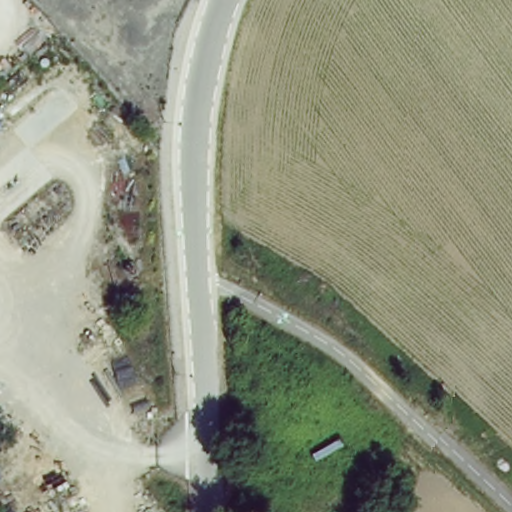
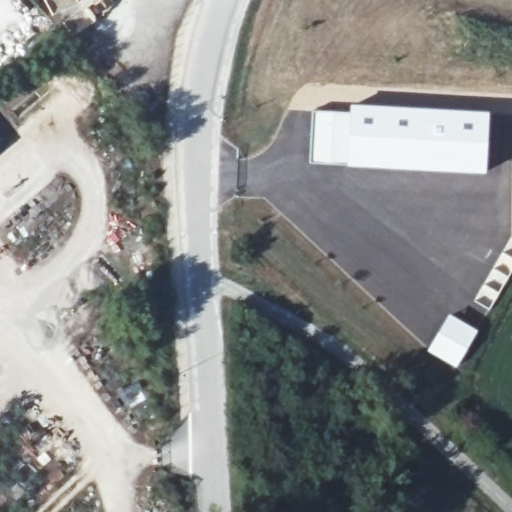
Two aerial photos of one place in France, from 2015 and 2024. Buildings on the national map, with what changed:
new [(312,109),(348,110),(349,102),(489,110),(486,174),(393,169),(308,163),(312,109)]

